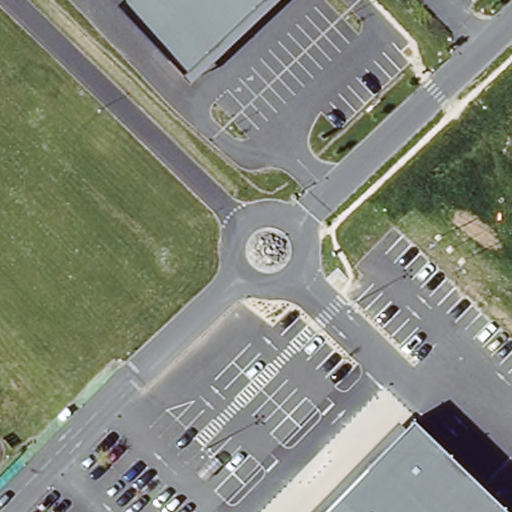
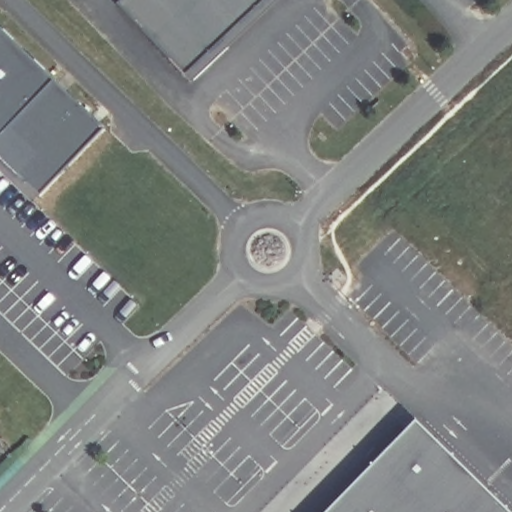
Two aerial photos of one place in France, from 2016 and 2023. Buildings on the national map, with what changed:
unchanged [(121,0),(281,0),(193,84),(117,4),(121,0)]
new [(101,130),(32,195),(0,163),(0,29),(101,130)]
unchanged [(415,416),(511,512),(321,512),(415,416)]

